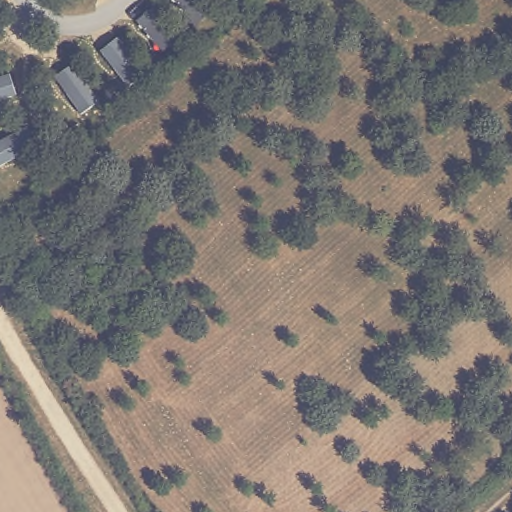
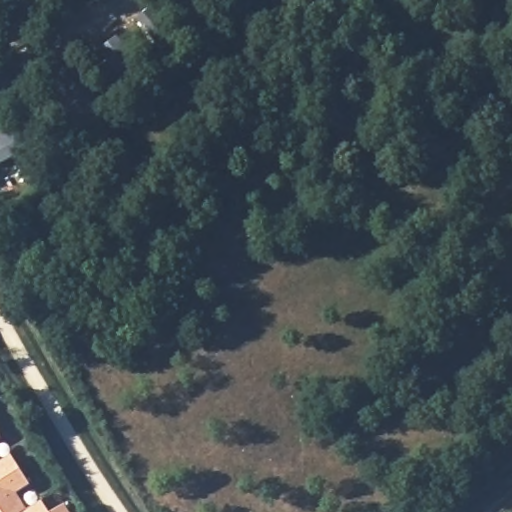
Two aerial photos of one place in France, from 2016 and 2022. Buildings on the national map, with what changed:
new [(0,438),(0,436),(1,437),(0,438)]
new [(30,485),(16,494),(26,511),(25,512),(0,512),(0,463),(11,456),(30,485)]
new [(48,512),(25,512),(41,501),(48,512)]
new [(68,512),(54,512),(64,505),(68,512)]

